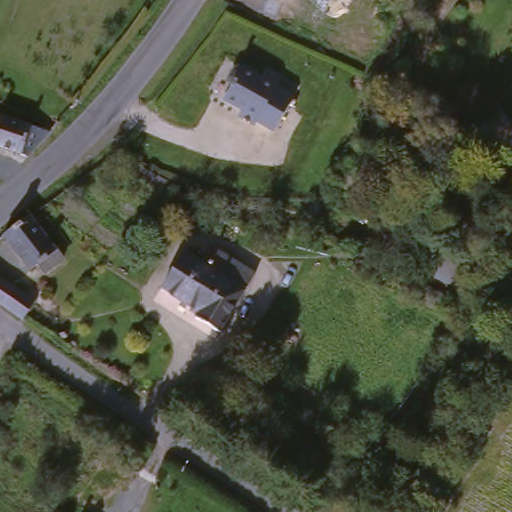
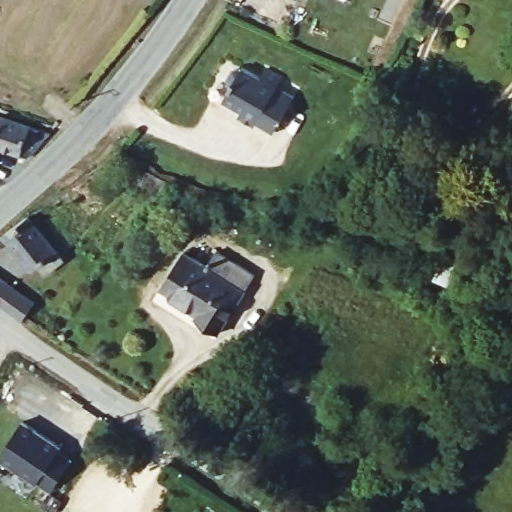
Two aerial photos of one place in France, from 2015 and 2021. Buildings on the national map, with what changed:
unchanged [(259,126),(257,130),(240,121),(244,115),(237,111),(240,108),(227,101),(234,89),(231,87),(230,82),(235,73),(240,72),(242,73),(244,71),(262,81),(267,72),(283,81),(278,90),(296,100),(277,136),(259,126)]
unchanged [(34,151),(0,140),(0,123),(2,117),(0,116),(0,109),(55,127),(34,151)]
unchanged [(137,180),(142,170),(161,180),(155,191),(137,180)]
unchanged [(35,211),(69,254),(51,267),(44,260),(36,266),(9,231),(35,211)]
unchanged [(195,313),(200,307),(162,283),(185,247),(209,261),(218,246),(256,270),(220,328),(195,313)]
unchanged [(462,290),(436,277),(446,255),(472,267),(462,290)]
unchanged [(15,287),(35,301),(36,302),(24,320),(22,319),(17,315),(2,306),(0,304),(0,277),(15,287)]
new [(22,423),(60,448),(57,453),(71,462),(51,492),(0,459),(0,456),(22,423)]

